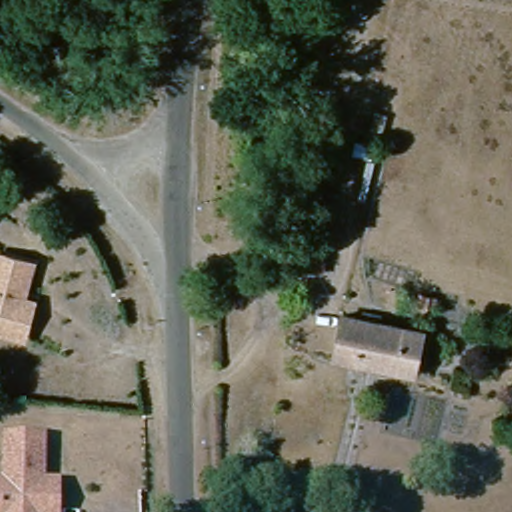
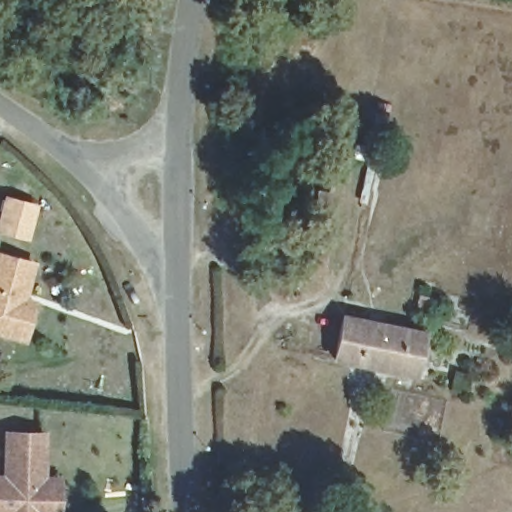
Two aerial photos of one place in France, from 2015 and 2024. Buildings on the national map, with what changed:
new [(41,204),(31,240),(0,232),(0,208),(4,194),(41,204)]
unchanged [(25,340),(0,333),(0,254),(34,264),(24,300),(35,303),(25,340)]
unchanged [(386,322),(427,330),(419,372),(333,356),(341,312),(386,322)]
unchanged [(7,478),(7,434),(45,435),(45,477),(60,477),(60,512),(0,512),(0,478),(7,478)]

